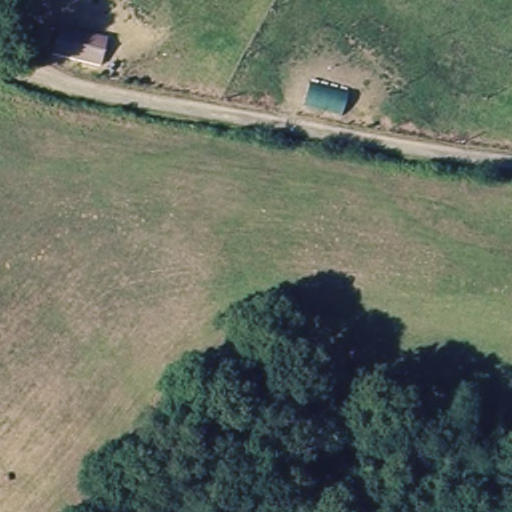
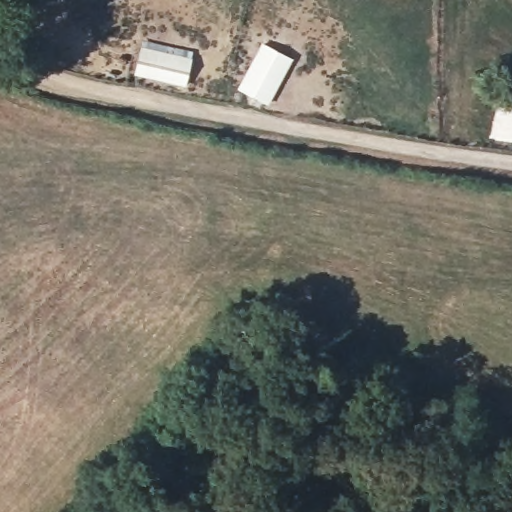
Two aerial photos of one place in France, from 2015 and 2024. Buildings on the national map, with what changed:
new [(194,52),(192,60),(186,86),(137,75),(142,50),(145,40),(194,52)]
new [(292,57),(275,104),(243,92),(261,45),(292,57)]
demolished [(351,92),(346,116),(306,107),(313,84),(351,92)]
new [(512,147),(493,144),(501,109),(512,111),(512,147)]

